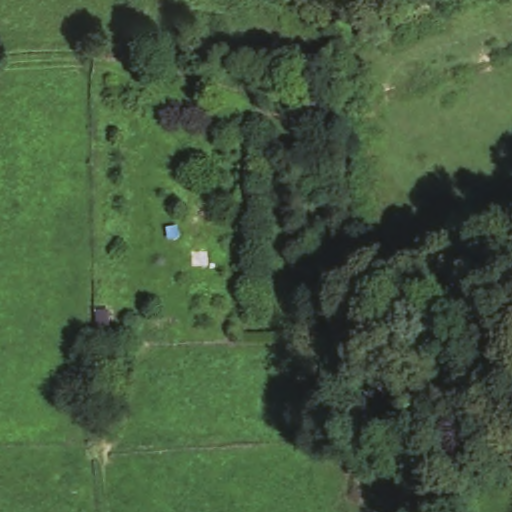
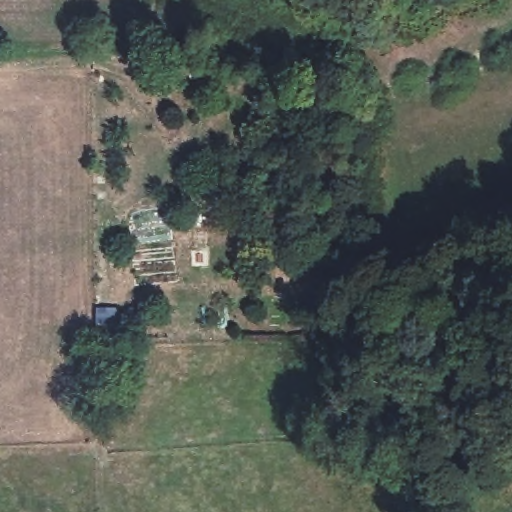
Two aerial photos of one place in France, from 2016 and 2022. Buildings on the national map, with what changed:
unchanged [(353,410),(323,408),(323,367),(354,368),(353,410)]

